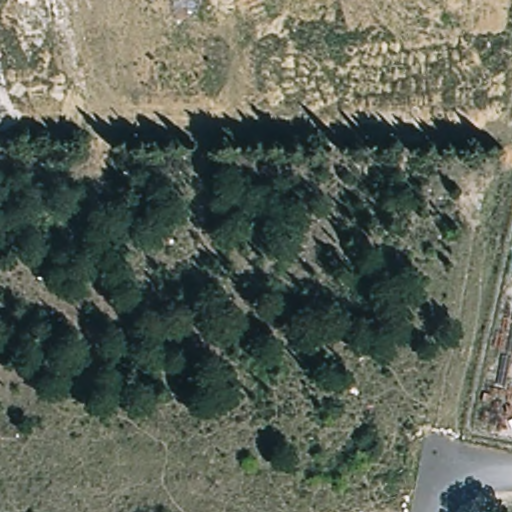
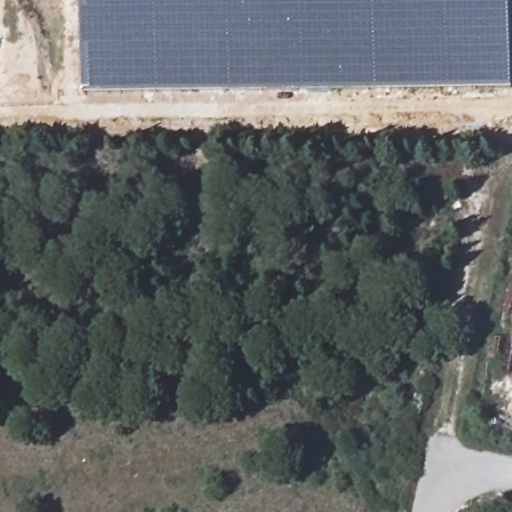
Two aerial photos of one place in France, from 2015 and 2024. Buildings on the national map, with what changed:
new [(84,96),(84,0),(512,0),(512,90),(84,96)]

